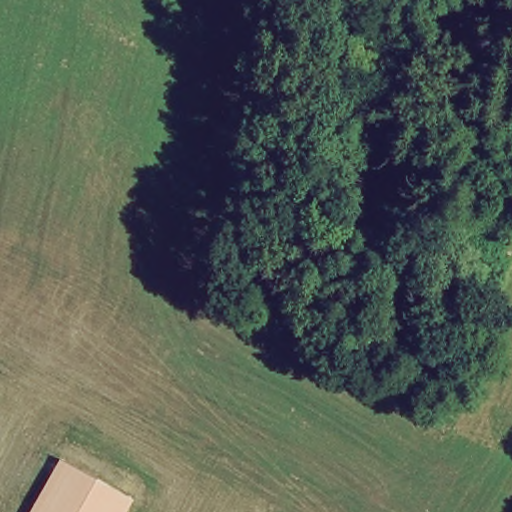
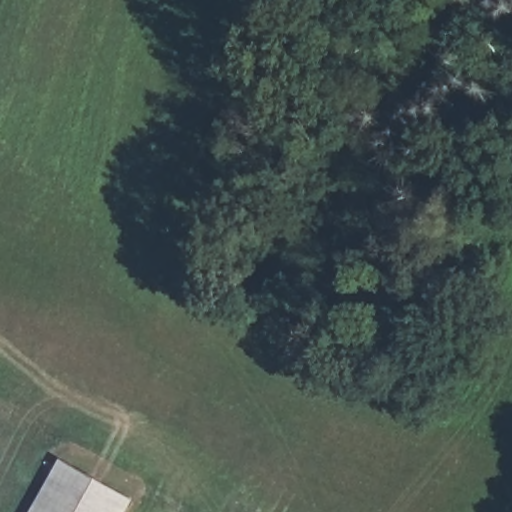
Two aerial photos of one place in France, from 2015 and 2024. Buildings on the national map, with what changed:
unchanged [(31,512),(60,461),(132,500),(126,512),(31,512)]

